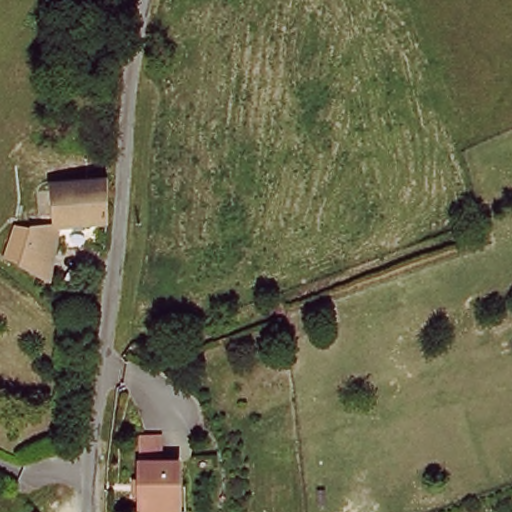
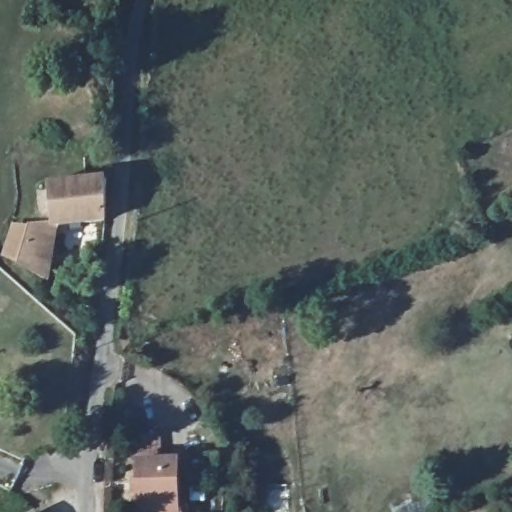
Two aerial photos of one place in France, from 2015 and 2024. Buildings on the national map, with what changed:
unchanged [(103,209),(101,230),(55,231),(48,288),(20,270),(28,231),(50,230),(45,187),(105,185),(103,209)]
unchanged [(130,512),(130,511),(130,448),(130,437),(151,437),(151,440),(151,462),(170,462),(170,511),(172,511),(172,512),(130,512)]
unchanged [(40,512),(42,511),(42,512),(40,512)]

